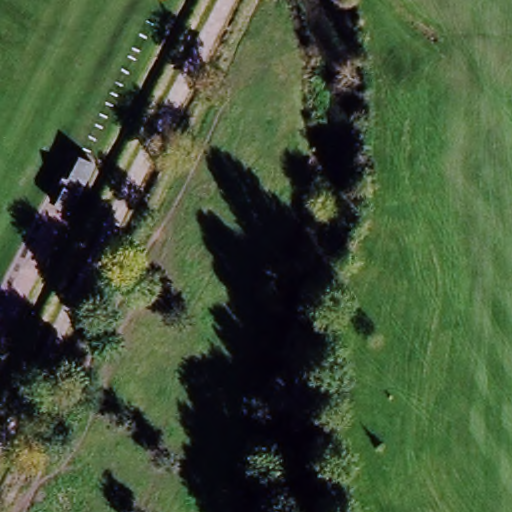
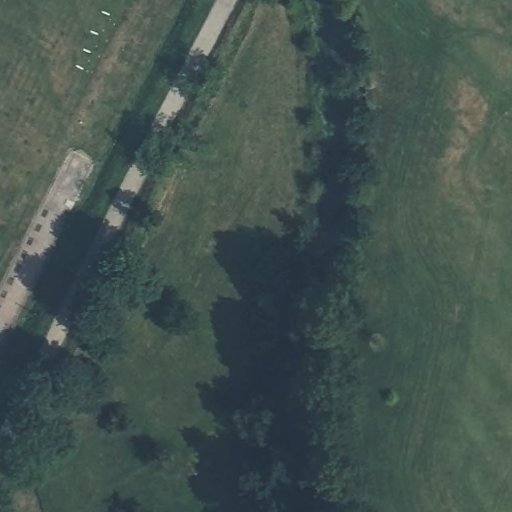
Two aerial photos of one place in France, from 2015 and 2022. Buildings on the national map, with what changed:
unchanged [(80,160),(95,167),(72,215),(58,208),(80,160)]

